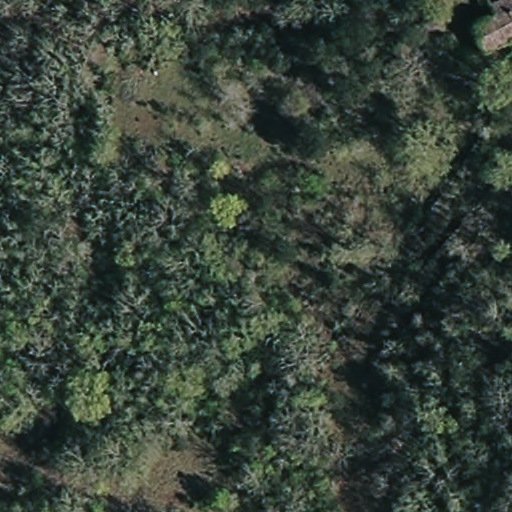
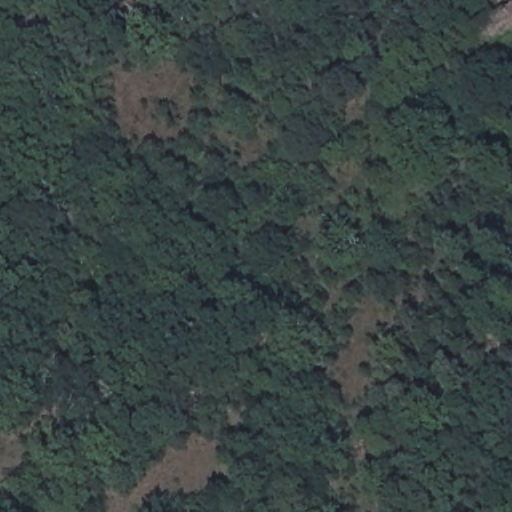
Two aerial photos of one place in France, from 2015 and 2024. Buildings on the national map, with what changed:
unchanged [(481,52),(471,26),(489,16),(481,0),(512,0),(512,42),(481,52)]

